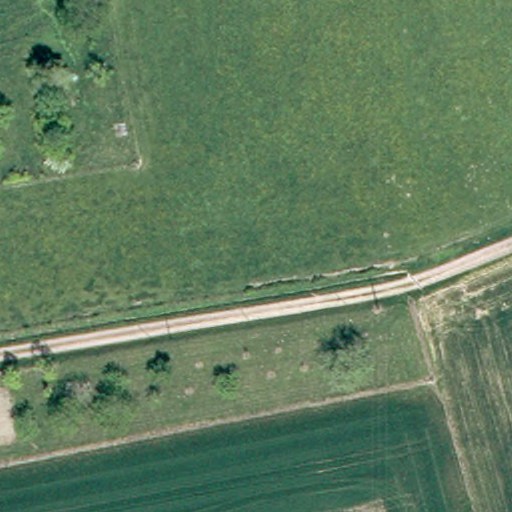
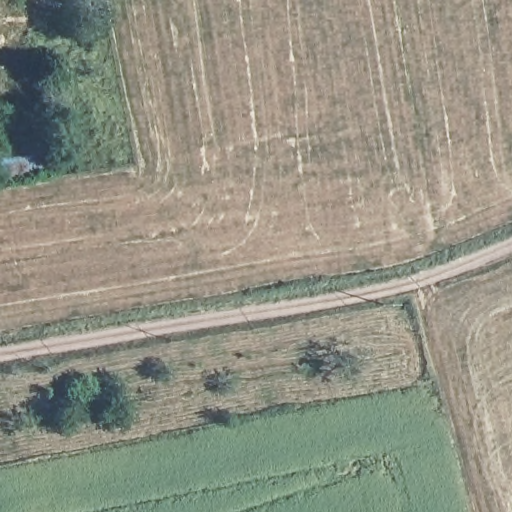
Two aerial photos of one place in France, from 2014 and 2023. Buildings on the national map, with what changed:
[]

